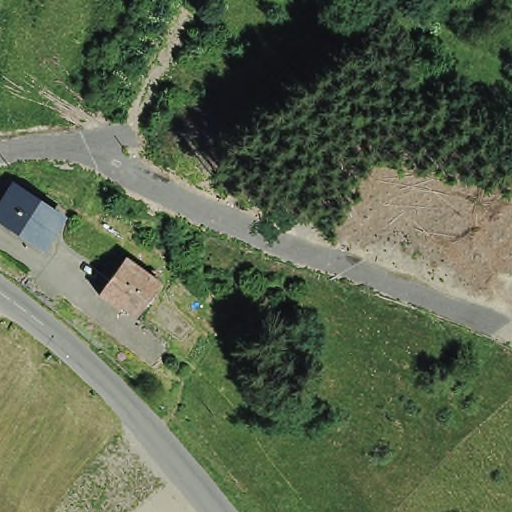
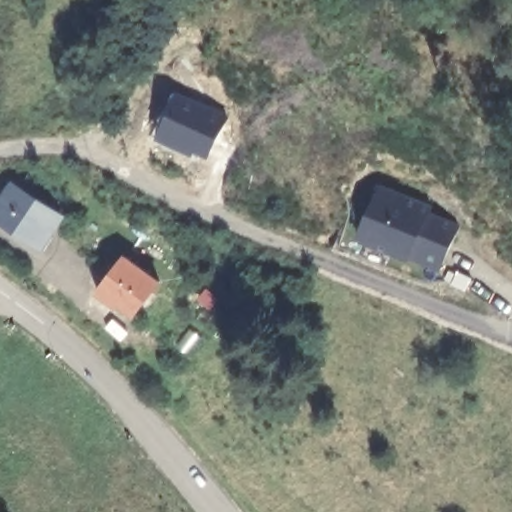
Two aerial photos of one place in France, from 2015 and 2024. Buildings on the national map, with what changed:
new [(157,140),(178,92),(228,117),(207,159),(196,151),(193,156),(157,140)]
unchanged [(36,256),(24,247),(1,229),(5,225),(0,221),(0,201),(13,184),(49,212),(58,219),(44,237),(48,240),(36,256)]
new [(440,272),(408,260),(355,239),(379,186),(433,207),(432,213),(460,226),(440,272)]
unchanged [(118,305),(113,310),(92,293),(96,289),(125,258),(156,286),(149,295),(131,316),(118,305)]

